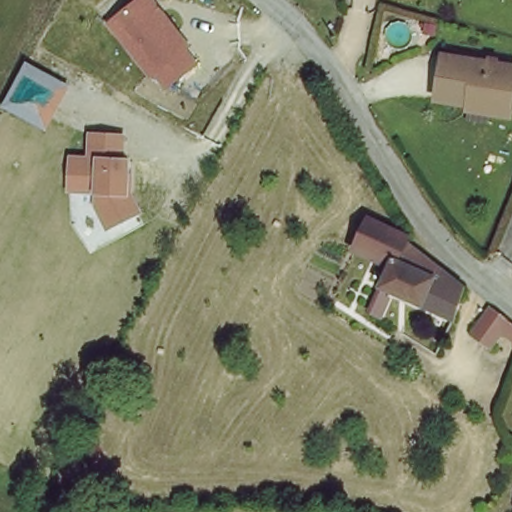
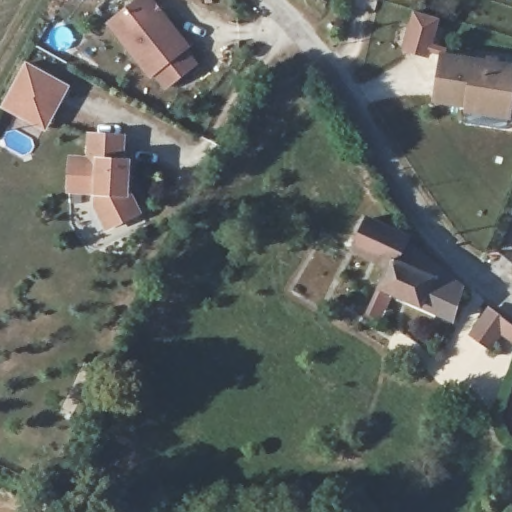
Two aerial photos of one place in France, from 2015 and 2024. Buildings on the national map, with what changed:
unchanged [(163,91),(107,21),(135,0),(156,0),(201,61),(163,91)]
new [(438,20),(428,56),(406,50),(417,13),(438,20)]
unchanged [(469,103),(434,97),(438,59),(512,68),(512,115),(510,121),(468,116),(469,103)]
new [(1,106),(26,61),(70,85),(45,130),(1,106)]
unchanged [(88,156),(89,130),(129,132),(127,184),(142,213),(107,232),(88,194),(66,193),(68,155),(88,156)]
unchanged [(442,326),(371,292),(380,270),(349,252),(363,224),(402,246),(399,253),(456,296),(442,326)]
unchanged [(482,315),(490,305),(512,323),(512,344),(500,329),(480,352),(462,338),(482,315)]

